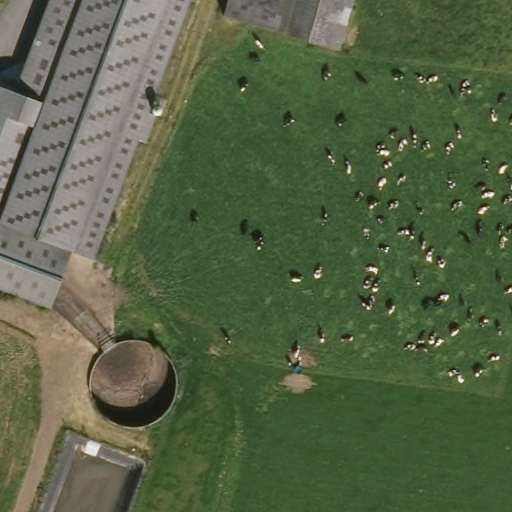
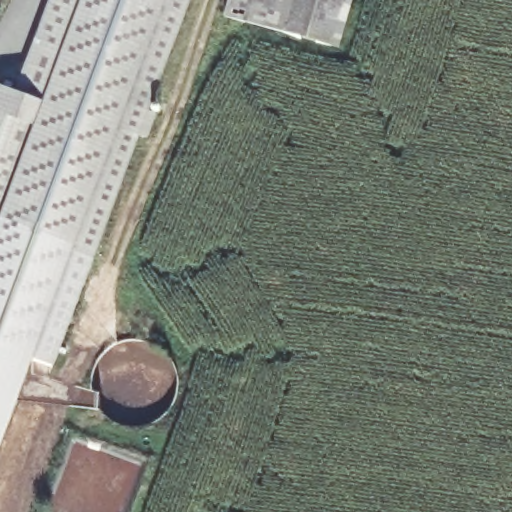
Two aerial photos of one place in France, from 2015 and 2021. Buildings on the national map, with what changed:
unchanged [(96,250),(74,241),(49,306),(0,287),(0,56),(2,53),(27,63),(51,0),(196,0),(194,6),(152,113),(155,114),(144,142),(139,140),(129,166),(96,250)]
unchanged [(229,11),(232,0),(346,0),(333,43),(229,11)]
new [(49,306),(74,241),(96,250),(52,368),(33,359),(0,446),(0,286),(49,306)]

